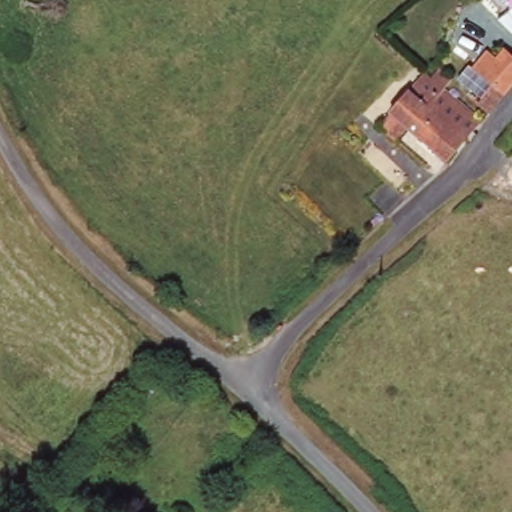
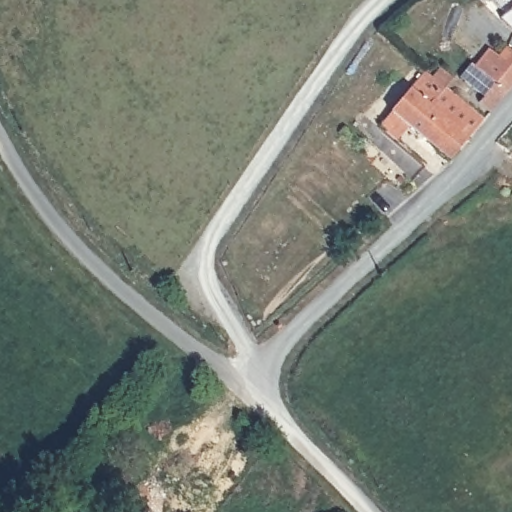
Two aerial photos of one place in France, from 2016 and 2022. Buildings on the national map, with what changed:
unchanged [(489,79),(483,74),(504,50),(512,56),(512,85),(511,85),(490,110),(475,97),(489,79)]
unchanged [(382,126),(392,114),(424,71),(483,119),(449,159),(436,149),(424,159),(382,126)]

